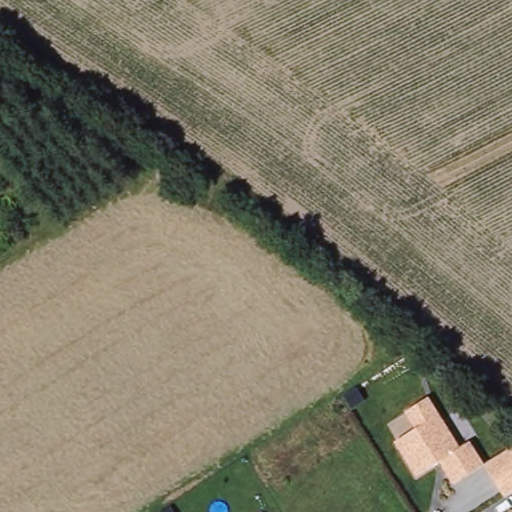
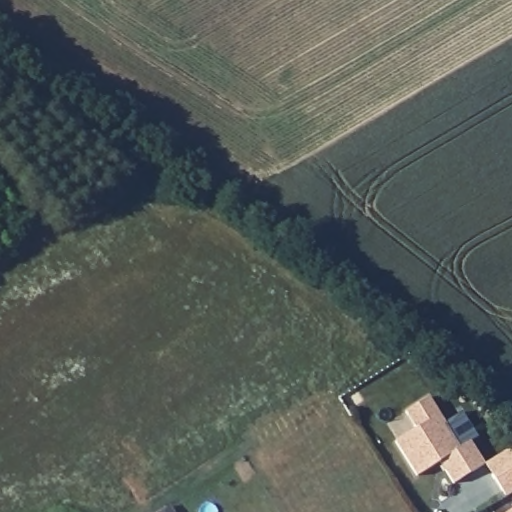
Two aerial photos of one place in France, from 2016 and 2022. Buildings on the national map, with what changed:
unchanged [(429,397),(461,447),(470,442),(485,465),(454,484),(440,462),(417,477),(395,442),(416,428),(406,412),(429,397)]
unchanged [(505,496),(486,466),(512,448),(512,492),(505,496)]

